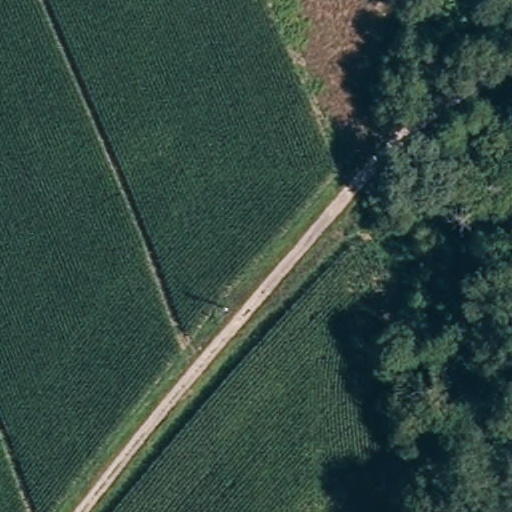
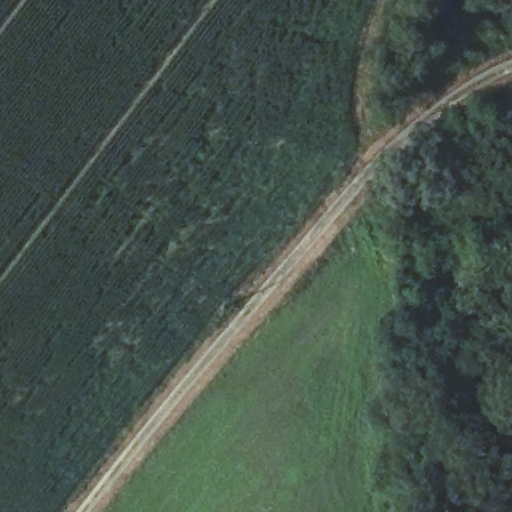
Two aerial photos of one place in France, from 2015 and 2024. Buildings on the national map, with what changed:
unchanged [(308,292),(301,299),(291,290),(298,282),(308,292)]

